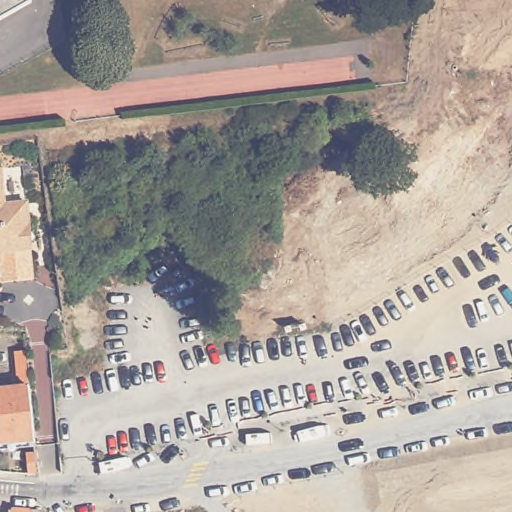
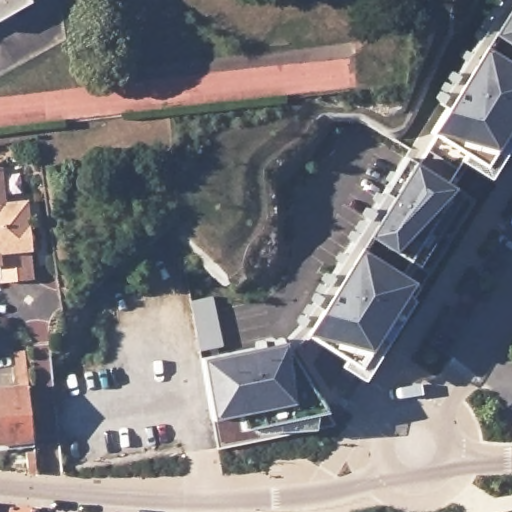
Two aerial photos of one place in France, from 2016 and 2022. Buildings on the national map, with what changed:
unchanged [(0,20),(0,0),(29,0),(30,3),(0,20)]
new [(304,320),(403,155),(417,163),(434,136),(428,132),(444,109),(437,104),(500,0),(512,0),(512,141),(488,179),(460,162),(447,184),(475,201),(364,379),(340,366),(343,360),(303,335),(289,350),(326,411),(334,425),(217,448),(211,417),(200,358),(281,341),(304,320)]
demolished [(136,149),(135,139),(64,146),(64,134),(87,130),(84,123),(109,121),(110,130),(158,122),(161,147),(136,149)]
unchanged [(3,201),(19,200),(25,199),(26,214),(29,247),(28,247),(30,277),(0,280),(0,184),(1,184),(3,201)]
unchanged [(14,370),(13,371),(10,347),(19,345),(27,435),(0,438),(0,383),(15,381),(14,370)]
unchanged [(25,452),(33,452),(34,467),(35,475),(27,473),(26,468),(25,452)]
unchanged [(5,493),(26,495),(26,498),(26,510),(27,512),(3,512),(5,493)]

